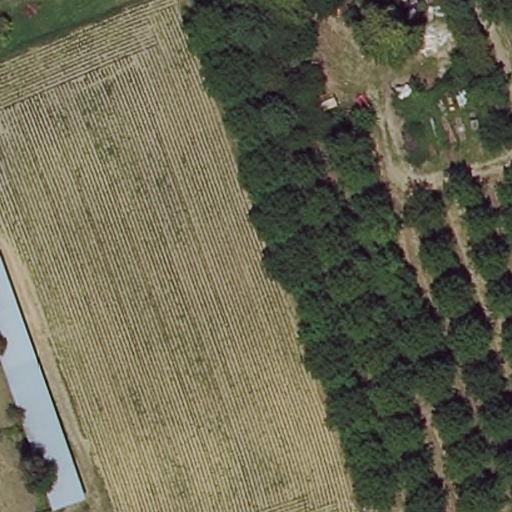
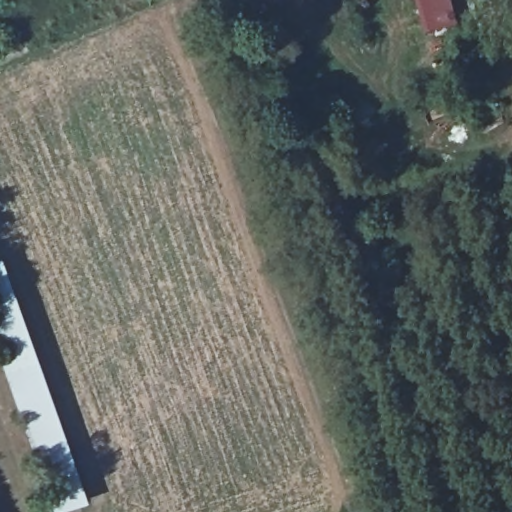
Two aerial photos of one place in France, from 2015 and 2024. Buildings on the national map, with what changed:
new [(422,29),(414,0),(449,0),(455,22),(422,29)]
unchanged [(89,505),(61,512),(53,512),(0,367),(0,262),(2,261),(89,505)]

